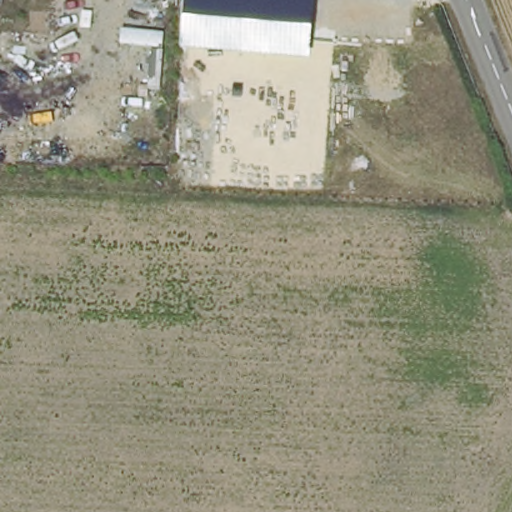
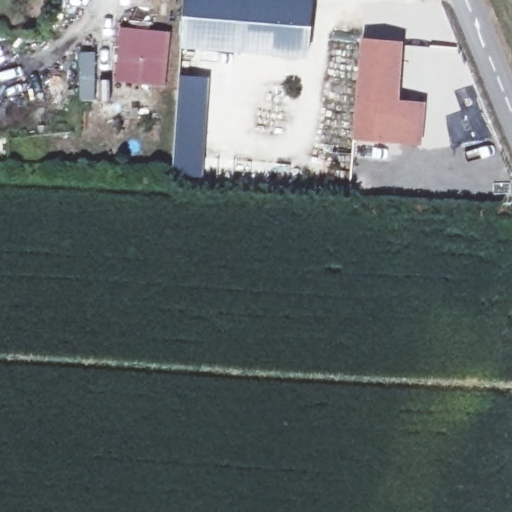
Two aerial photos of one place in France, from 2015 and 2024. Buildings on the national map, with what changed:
unchanged [(316,0),(312,58),(180,50),(185,0),(316,0)]
new [(120,26),(170,31),(166,86),(115,80),(120,26)]
new [(357,138),(367,36),(405,40),(400,102),(425,104),(422,144),(357,138)]
new [(95,50),(95,79),(110,79),(110,100),(79,100),(78,50),(95,50)]
new [(180,74),(210,76),(202,180),(171,177),(180,74)]

